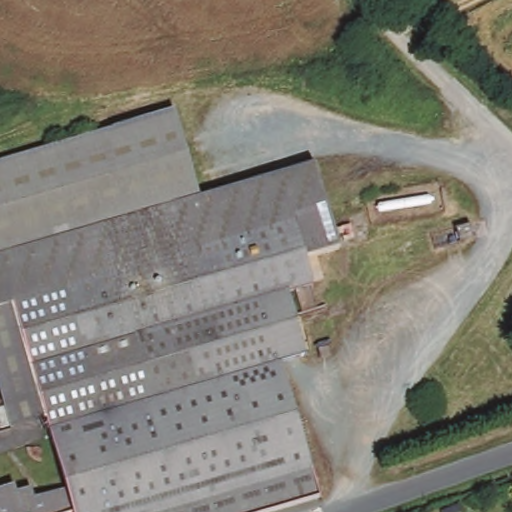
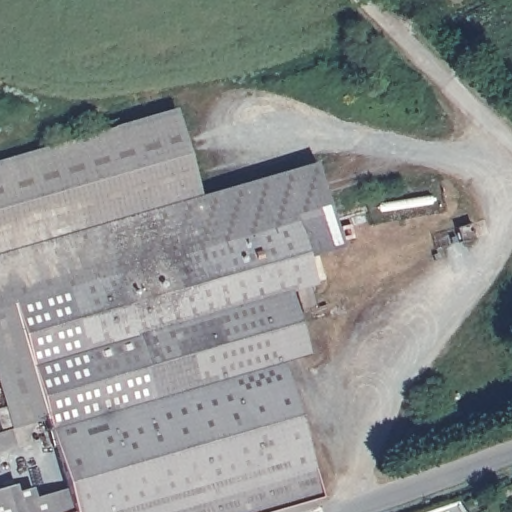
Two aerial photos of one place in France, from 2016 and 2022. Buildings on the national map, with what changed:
unchanged [(200,197),(0,254),(0,156),(175,106),(200,197)]
unchanged [(313,287),(290,293),(310,356),(283,364),(320,500),(278,512),(0,512),(0,486),(12,482),(16,492),(30,487),(35,498),(65,492),(45,416),(21,332),(0,336),(0,254),(200,197),(315,163),(342,249),(307,259),(313,287)]
unchanged [(45,416),(8,424),(0,394),(0,336),(21,332),(45,416)]

